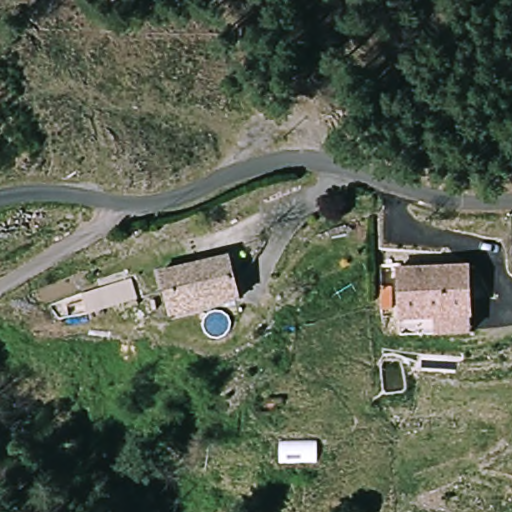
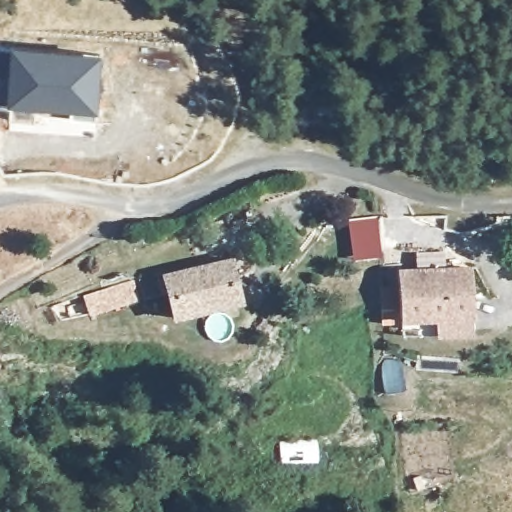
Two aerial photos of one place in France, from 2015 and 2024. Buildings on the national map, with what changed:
new [(101,108),(96,108),(96,116),(70,114),(35,110),(34,120),(11,119),(12,107),(0,106),(0,44),(13,44),(103,48),(101,108)]
unchanged [(159,272),(229,257),(241,301),(169,317),(159,272)]
unchanged [(133,272),(143,288),(99,314),(88,300),(86,297),(131,270),(133,272)]
unchanged [(402,333),(401,322),(398,272),(469,271),(472,321),(473,333),(402,333)]

